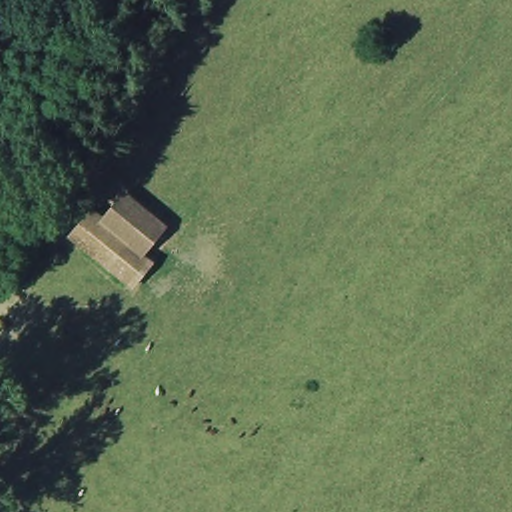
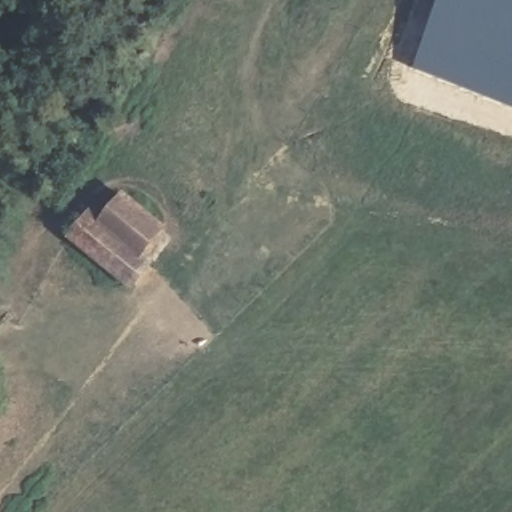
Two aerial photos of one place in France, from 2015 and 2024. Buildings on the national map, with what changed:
new [(512,0),(512,108),(413,67),(439,0),(512,0)]
unchanged [(66,240),(91,213),(103,222),(124,195),(166,229),(133,292),(66,240)]

